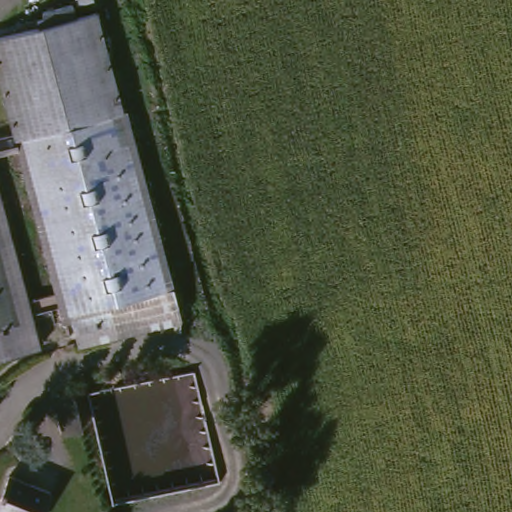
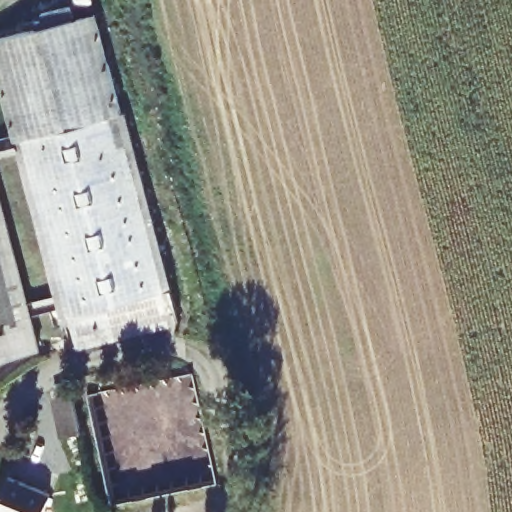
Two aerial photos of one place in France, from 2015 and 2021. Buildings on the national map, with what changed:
unchanged [(34,142),(37,152),(26,155),(0,57),(0,49),(40,38),(39,32),(55,27),(54,24),(77,17),(81,30),(104,24),(129,116),(34,142)]
unchanged [(34,142),(129,116),(178,292),(83,317),(37,152),(34,142)]
unchanged [(35,337),(0,346),(0,202),(35,337)]
unchanged [(178,292),(182,308),(87,333),(83,317),(178,292)]
unchanged [(89,426),(67,431),(59,397),(77,393),(81,392),(89,426)]
unchanged [(15,512),(2,507),(14,475),(56,492),(49,512),(15,512)]

